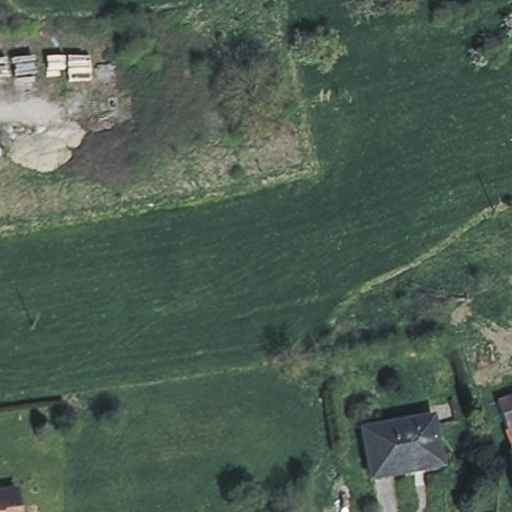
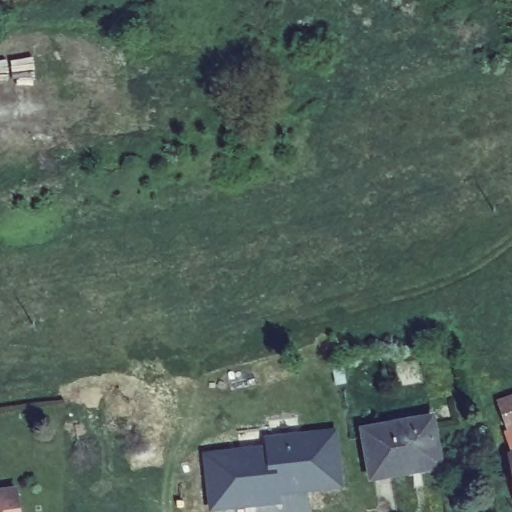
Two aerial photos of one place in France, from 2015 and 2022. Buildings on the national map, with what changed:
unchanged [(505,418),(512,416),(512,437),(505,418)]
unchanged [(437,418),(445,462),(416,468),(416,473),(378,480),(369,431),(437,418)]
new [(266,445),(265,436),(338,428),(345,490),(279,496),(280,505),(214,512),(209,512),(202,451),(266,445)]
unchanged [(512,447),(512,458),(509,448),(512,447)]
unchanged [(19,512),(0,512),(0,489),(16,487),(19,512)]

